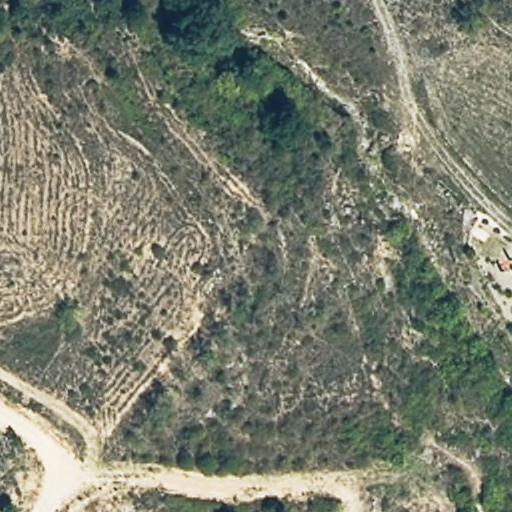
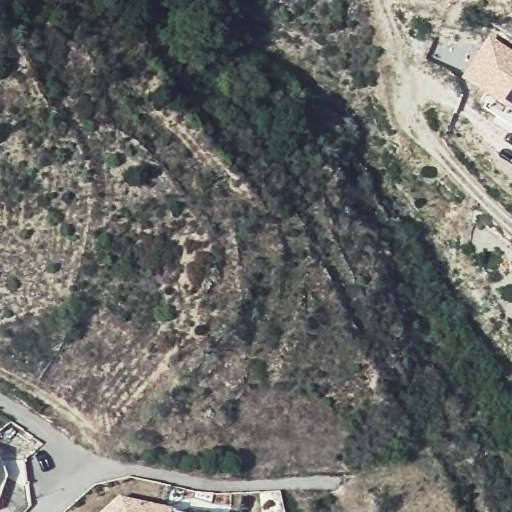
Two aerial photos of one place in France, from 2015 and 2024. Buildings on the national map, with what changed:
new [(512,50),(512,114),(460,79),(489,35),(512,50)]
new [(7,474),(0,493),(0,464),(7,474)]
new [(193,512),(119,512),(134,499),(193,512)]

